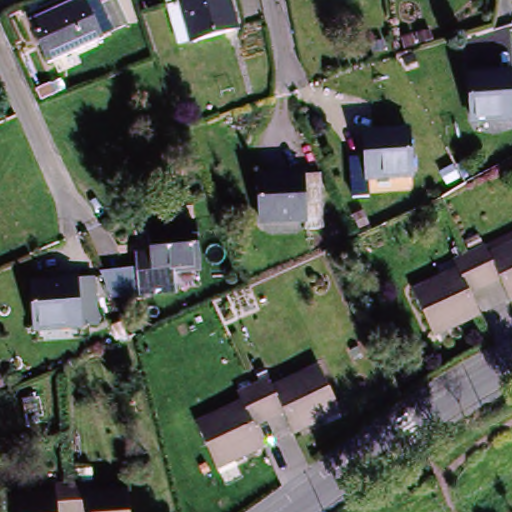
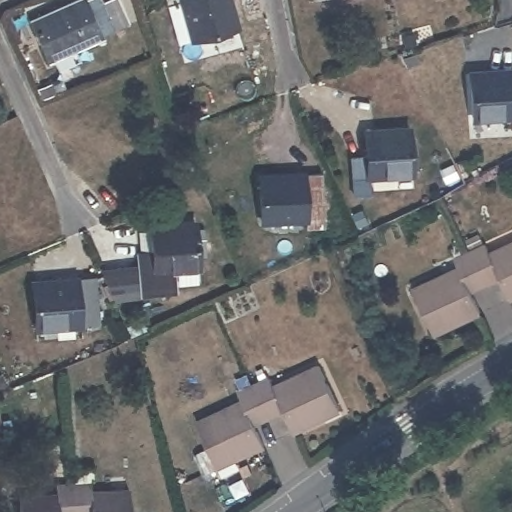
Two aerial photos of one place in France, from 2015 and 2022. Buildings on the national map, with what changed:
unchanged [(102,4),(110,0),(119,0),(130,22),(101,35),(104,40),(50,64),(30,21),(77,0),(84,0),(85,0),(86,0),(101,0),(102,4)]
unchanged [(236,23),(179,38),(168,0),(230,0),(236,23)]
unchanged [(430,30),(432,39),(420,43),(417,35),(430,30)]
unchanged [(401,37),(412,35),(415,46),(405,50),(401,37)]
unchanged [(383,44),(386,55),(376,58),(373,47),(383,44)]
unchanged [(512,68),(512,112),(473,115),(470,70),(512,68)]
unchanged [(55,94),(42,99),(39,90),(51,85),(55,94)]
unchanged [(350,153),(365,151),(364,128),(410,125),(412,169),(367,172),(369,191),(354,192),(352,181),(350,153)]
unchanged [(261,222),(260,177),(322,175),(325,225),(306,225),(306,220),(261,222)]
unchanged [(140,291),(138,270),(136,249),(151,248),(150,221),(195,219),(199,265),(173,267),(174,280),(165,285),(162,279),(155,280),(155,290),(140,291)]
unchanged [(500,278),(485,284),(466,245),(465,241),(481,234),(491,255),(512,244),(512,297),(510,298),(500,278)]
unchanged [(432,330),(414,290),(459,269),(451,251),(466,245),(485,284),(471,290),(481,313),(450,327),(433,335),(432,330)]
unchanged [(33,275),(94,270),(97,315),(35,320),(33,275)]
unchanged [(111,328),(121,325),(126,337),(116,341),(111,328)]
unchanged [(323,419),(323,420),(295,433),(283,411),(270,418),(255,387),(261,385),(256,373),(266,368),(275,386),(320,366),(339,407),(341,411),(323,419)]
unchanged [(1,380),(7,391),(0,394),(0,380),(1,380)]
unchanged [(199,424),(243,403),(239,395),(255,387),(270,418),(255,425),(265,446),(236,460),(220,468),(217,464),(199,424)]
unchanged [(72,475),(90,473),(92,492),(130,490),(132,512),(75,512),(72,484),(72,475)]
unchanged [(56,495),(55,485),(72,484),(75,512),(19,512),(18,497),(56,495)]

